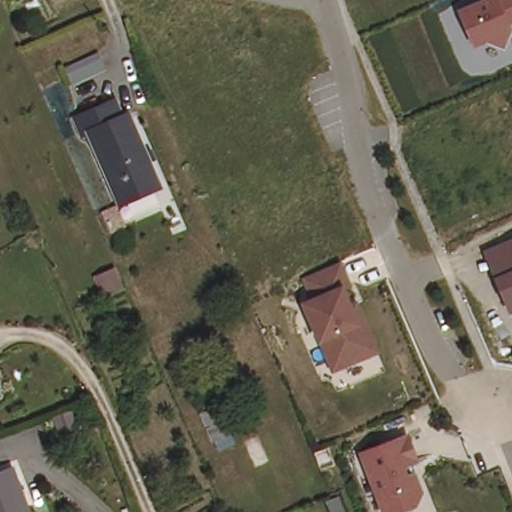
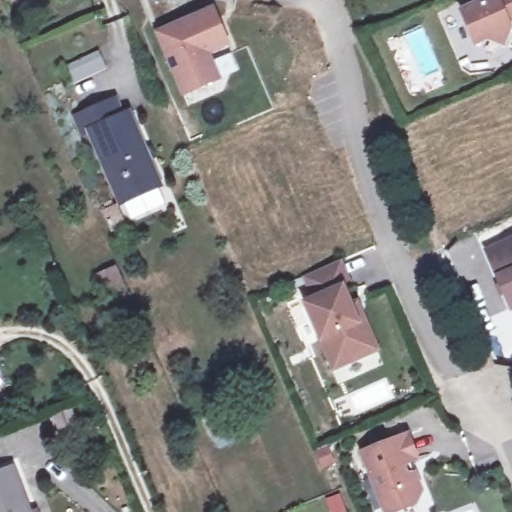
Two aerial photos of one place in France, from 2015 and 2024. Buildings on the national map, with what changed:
unchanged [(492,43),(479,49),(463,11),(491,0),(512,0),(512,39),(507,50),(492,43)]
new [(209,9),(223,43),(203,51),(218,79),(184,93),(155,32),(209,9)]
unchanged [(105,65),(70,79),(63,61),(97,46),(105,65)]
unchanged [(157,193),(118,209),(86,138),(82,139),(74,121),(112,105),(119,120),(124,118),(157,193)]
unchanged [(512,237),(512,312),(485,248),(512,237)]
unchanged [(332,372),(305,302),(312,299),(303,275),(343,260),(381,352),(332,372)]
unchanged [(113,265),(120,283),(103,291),(95,272),(113,265)]
unchanged [(219,411),(228,430),(210,438),(202,418),(219,411)]
unchanged [(419,452),(409,457),(426,499),(388,512),(380,512),(356,451),(409,427),(419,452)]
unchanged [(8,462),(27,512),(0,512),(0,464),(8,462)]

